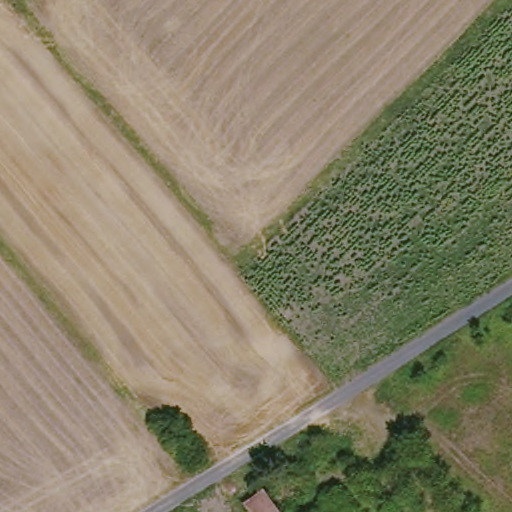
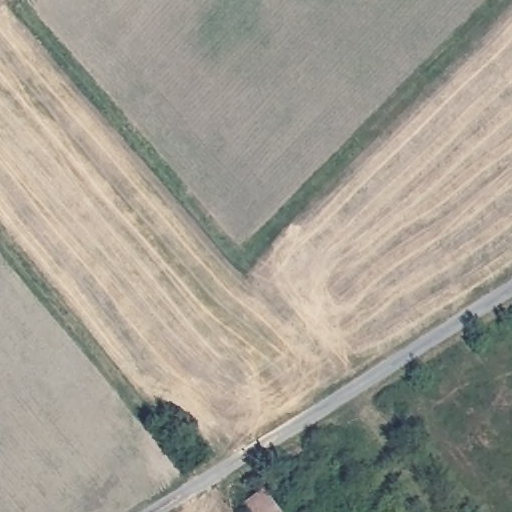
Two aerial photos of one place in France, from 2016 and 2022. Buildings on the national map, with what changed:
unchanged [(247,504),(263,492),(277,512),(253,512),(247,504)]

